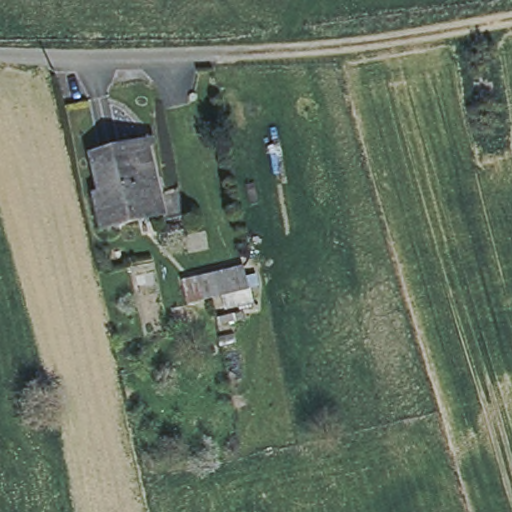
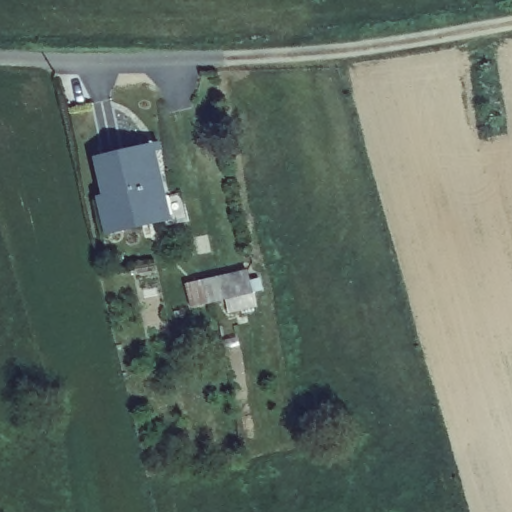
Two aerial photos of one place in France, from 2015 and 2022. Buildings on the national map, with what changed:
unchanged [(97,155),(149,144),(161,195),(182,190),(188,219),(165,225),(164,217),(115,228),(104,230),(96,195),(107,193),(97,155)]
unchanged [(186,280),(250,266),(259,306),(231,313),(228,295),(193,304),(186,280)]

